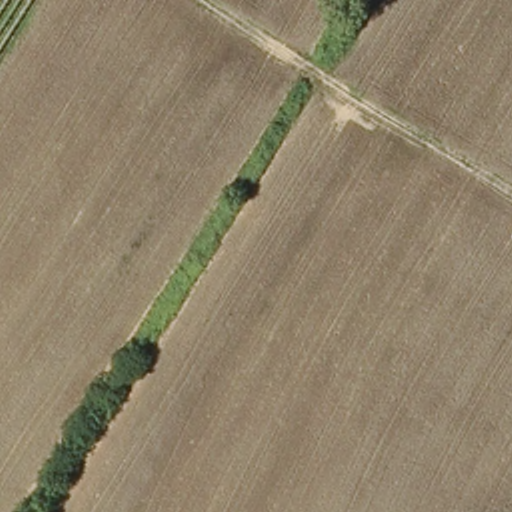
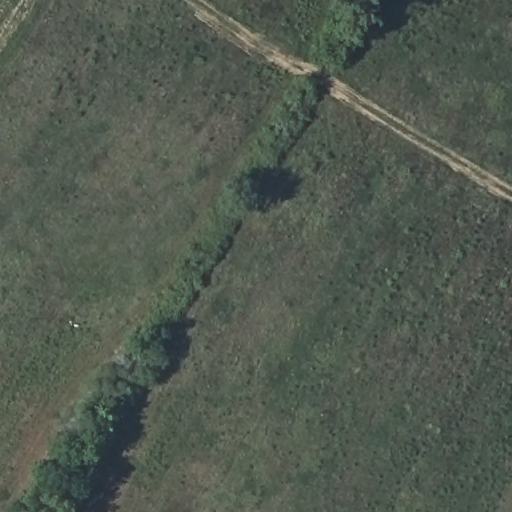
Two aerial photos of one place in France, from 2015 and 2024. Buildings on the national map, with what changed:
[]

